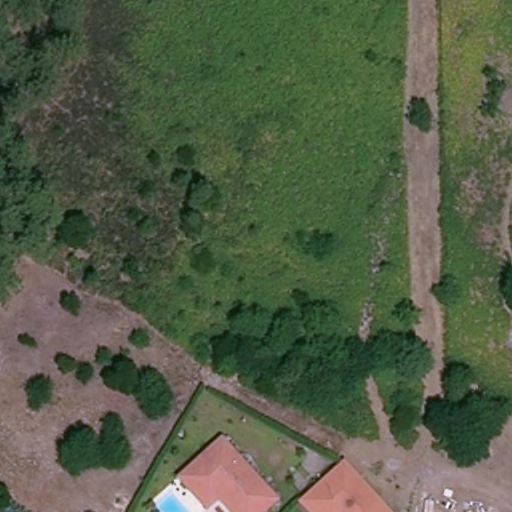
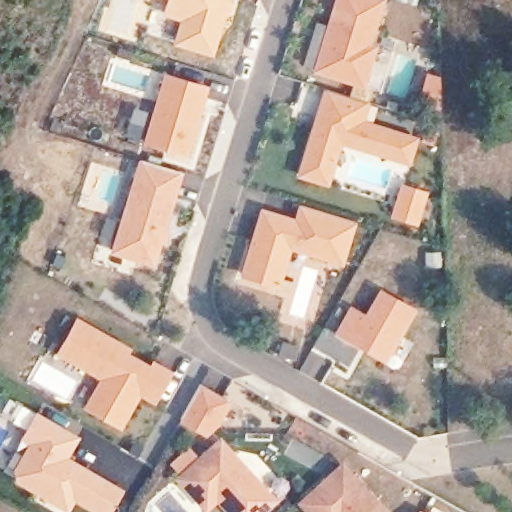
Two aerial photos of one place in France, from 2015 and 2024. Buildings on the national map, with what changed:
new [(214,57),(172,45),(180,21),(162,15),(166,0),(231,0),(214,57)]
new [(334,0),(386,0),(372,42),(378,45),(365,88),(312,72),(334,0)]
new [(165,72),(210,86),(188,158),(142,144),(165,72)]
new [(370,102),(365,119),(418,136),(410,166),(341,144),(329,187),(296,177),(323,89),(370,102)]
new [(184,172),(155,267),(109,253),(138,159),(184,172)]
new [(294,217),(298,203),(357,222),(343,266),(291,249),(280,288),(239,277),(261,207),(294,217)]
new [(365,313),(378,288),(417,307),(386,363),(334,334),(350,306),(365,313)]
new [(174,372),(155,406),(140,398),(121,430),(82,407),(99,379),(55,355),(77,316),(174,372)]
new [(232,402),(219,425),(207,437),(180,421),(200,385),(232,402)]
new [(69,512),(66,512),(15,482),(12,468),(29,444),(20,438),(26,429),(0,416),(9,397),(37,410),(81,437),(69,456),(125,490),(111,512),(93,512),(75,502),(69,512)]
unchanged [(226,432),(278,491),(261,512),(213,512),(180,477),(226,432)]
unchanged [(388,512),(311,512),(301,501),(343,463),(388,512)]
new [(425,512),(418,512),(420,509),(425,512)]

